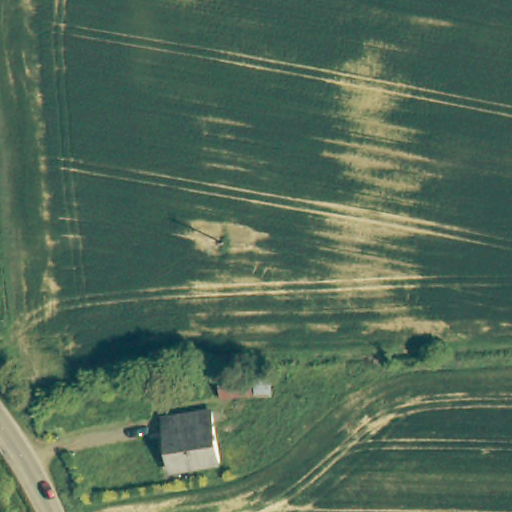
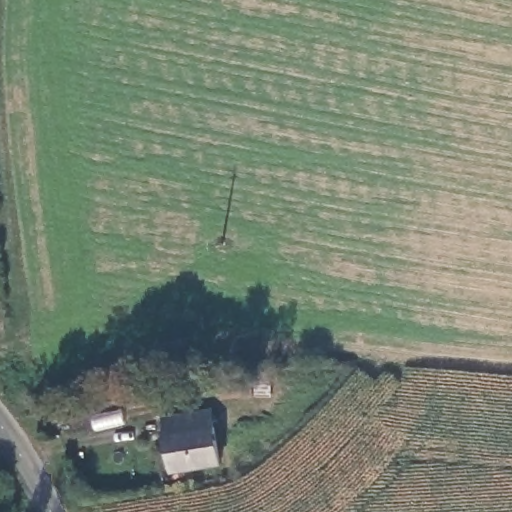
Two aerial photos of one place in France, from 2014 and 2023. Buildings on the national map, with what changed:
unchanged [(268,371),(270,393),(224,397),(222,375),(268,371)]
unchanged [(208,408),(216,461),(169,468),(162,415),(208,408)]

